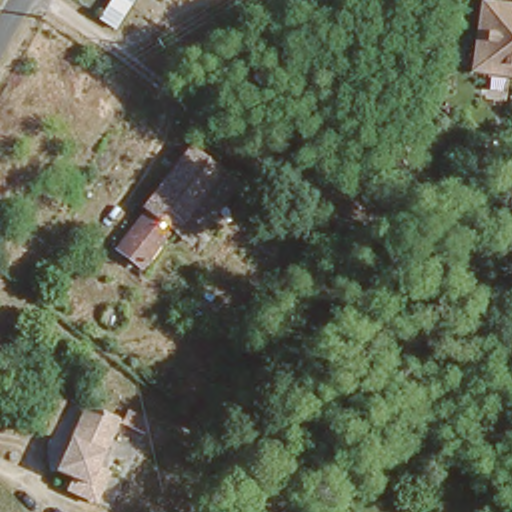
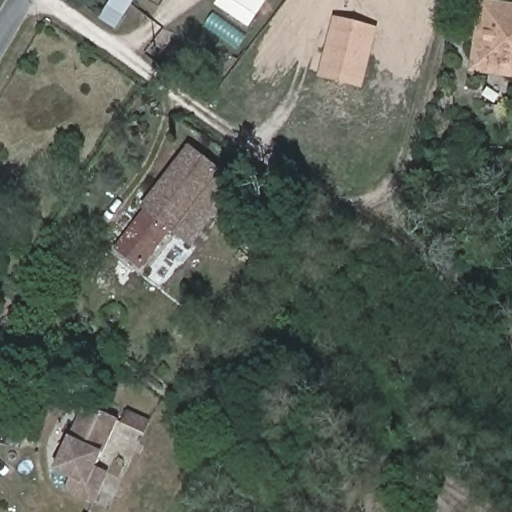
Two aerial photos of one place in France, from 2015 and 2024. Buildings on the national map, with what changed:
unchanged [(102,14),(111,0),(134,0),(119,24),(102,14)]
new [(250,27),(214,6),(218,0),(268,0),(250,27)]
unchanged [(476,9),(512,15),(512,87),(465,78),(476,9)]
new [(362,90),(317,79),(333,17),(378,29),(362,90)]
unchanged [(170,231),(143,269),(120,252),(148,214),(143,210),(186,147),(219,171),(175,234),(170,231)]
unchanged [(60,471),(90,407),(120,419),(97,469),(106,473),(95,501),(87,497),(85,502),(74,493),(79,479),(60,471)]

